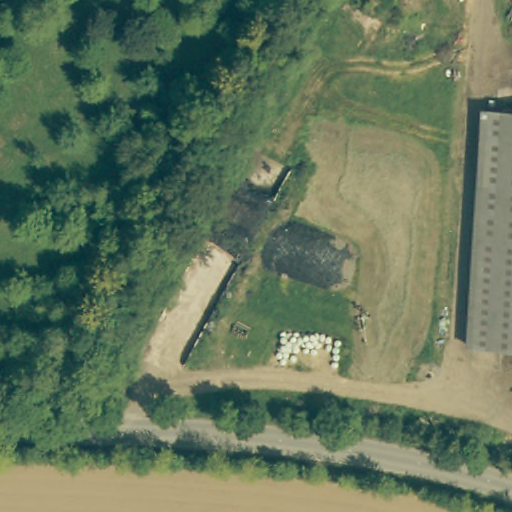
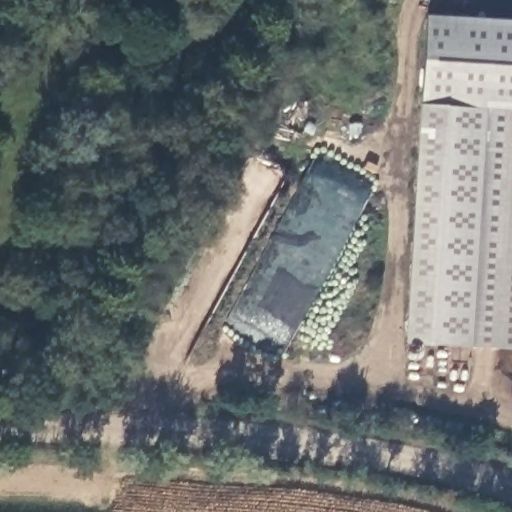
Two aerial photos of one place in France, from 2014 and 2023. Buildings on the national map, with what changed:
new [(472,345),(404,342),(427,15),(512,20),(512,110),(487,109),(472,345)]
unchanged [(512,348),(472,345),(487,109),(512,110),(512,348)]

